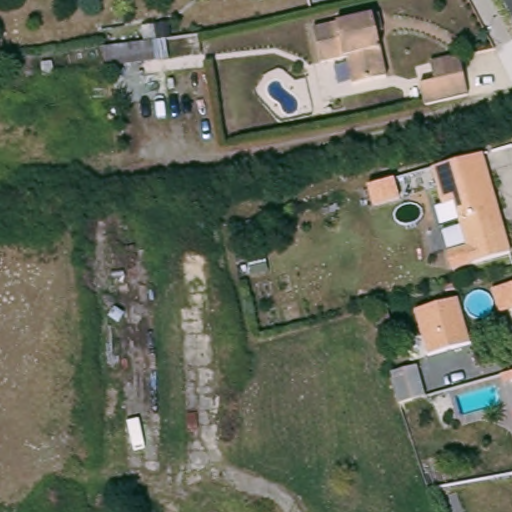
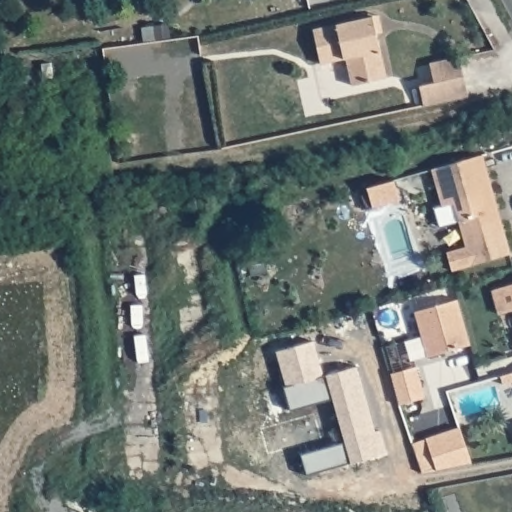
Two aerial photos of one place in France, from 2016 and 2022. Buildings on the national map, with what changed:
unchanged [(377,29),(380,46),(369,49),(373,65),(379,96),(346,102),(340,72),(314,78),(307,44),(365,32),(377,29)]
unchanged [(185,38),(188,57),(103,70),(101,61),(100,52),(185,38)]
unchanged [(415,109),(411,90),(431,84),(425,64),(456,57),(466,100),(415,109)]
unchanged [(487,152),(512,245),(512,251),(474,262),(457,201),(444,204),(434,167),(487,152)]
new [(394,179),(400,199),(374,206),(368,187),(394,179)]
unchanged [(512,287),(512,313),(507,288),(512,287)]
unchanged [(415,312),(458,300),(470,343),(428,355),(415,312)]
new [(292,410),(284,386),(288,385),(278,351),(314,341),(324,376),(327,377),(333,398),(292,410)]
new [(359,365),(375,430),(382,427),(388,452),(351,462),(333,398),(327,377),(359,365)]
new [(417,366),(425,397),(399,403),(391,373),(417,366)]
new [(461,427),(473,463),(438,470),(427,438),(461,427)]

